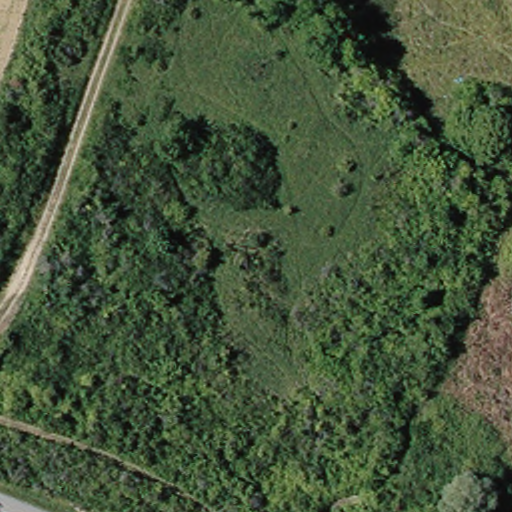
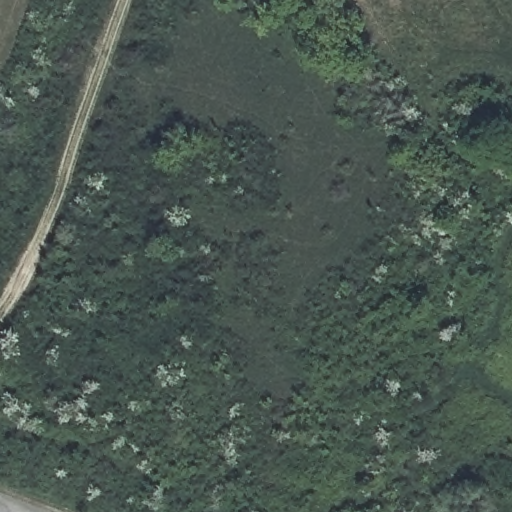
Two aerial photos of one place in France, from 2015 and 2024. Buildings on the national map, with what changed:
unchanged [(512,99),(512,114),(507,123),(485,111),(498,92),(512,99)]

